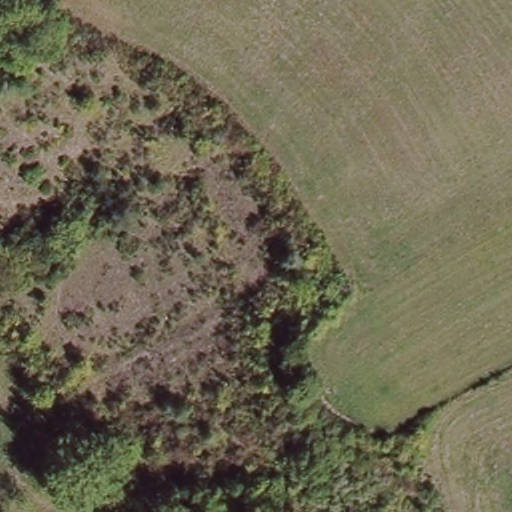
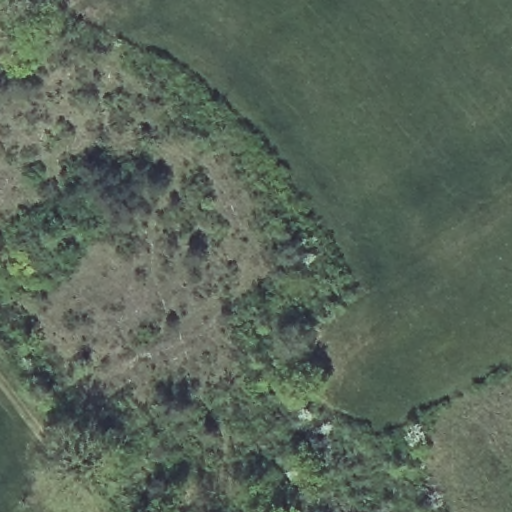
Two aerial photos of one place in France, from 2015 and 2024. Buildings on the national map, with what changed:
[]

